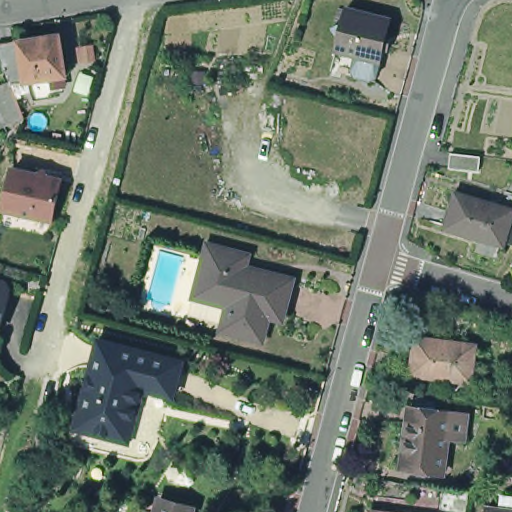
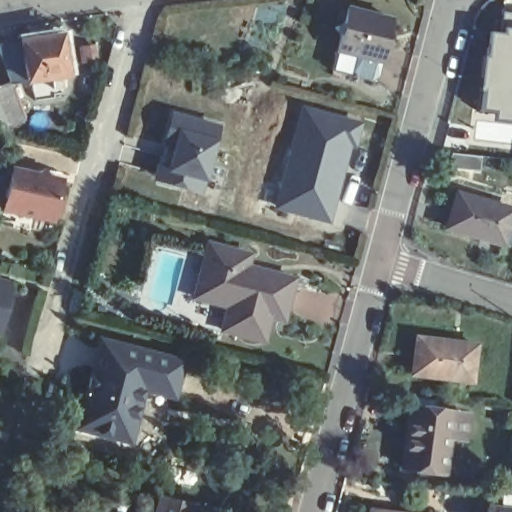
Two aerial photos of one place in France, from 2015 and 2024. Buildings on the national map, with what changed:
unchanged [(379,64),(335,52),(346,10),(389,21),(379,64)]
new [(498,113),(484,112),(486,91),(483,91),(486,59),(492,60),(493,36),(506,37),(509,15),(512,15),(512,125),(496,123),(498,113)]
unchanged [(65,30),(71,72),(65,73),(66,80),(57,81),(56,74),(30,77),(14,79),(1,40),(24,37),(65,30)]
unchanged [(29,97),(38,124),(21,119),(15,102),(29,97)]
new [(276,209),(300,106),(365,124),(359,151),(353,149),(333,226),(276,209)]
new [(212,143),(203,176),(199,189),(156,177),(173,117),(216,129),(212,143)]
unchanged [(40,176),(46,172),(48,173),(51,179),(65,181),(59,207),(55,222),(7,211),(10,195),(16,170),(40,176)]
unchanged [(474,246),(478,232),(444,222),(455,189),(511,205),(501,238),(499,237),(494,252),(474,246)]
unchanged [(184,297),(198,245),(224,252),(213,296),(211,305),(184,297)]
unchanged [(274,312),(213,296),(224,252),(226,253),(239,256),(236,266),(283,279),(274,312)]
unchanged [(10,280),(13,286),(2,326),(1,329),(0,333),(0,277),(10,280)]
unchanged [(273,320),(259,316),(253,340),(213,330),(218,306),(211,305),(213,296),(274,312),(273,320)]
unchanged [(81,428),(83,420),(104,341),(186,363),(177,396),(144,388),(140,403),(143,404),(135,434),(133,441),(81,428)]
unchanged [(416,343),(436,345),(474,350),(472,369),(469,386),(411,380),(416,343)]
unchanged [(451,442),(447,477),(406,471),(414,413),(423,414),(424,405),(439,406),(439,410),(452,411),(452,417),(454,418),(451,442)]
unchanged [(160,499),(193,507),(192,512),(156,512),(158,508),(160,499)]
unchanged [(512,506),(512,512),(498,512),(499,504),(512,506)]
unchanged [(376,512),(368,512),(369,511),(376,512)]

